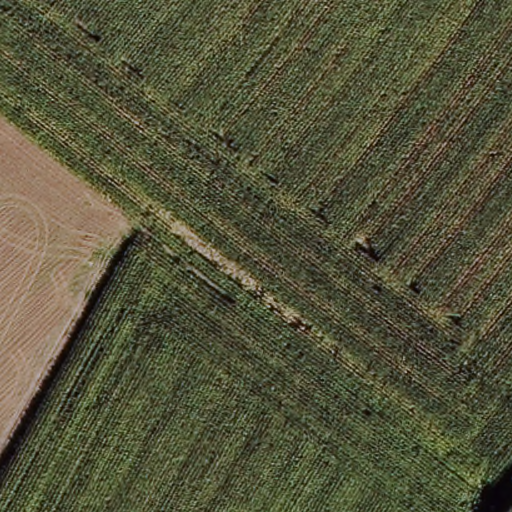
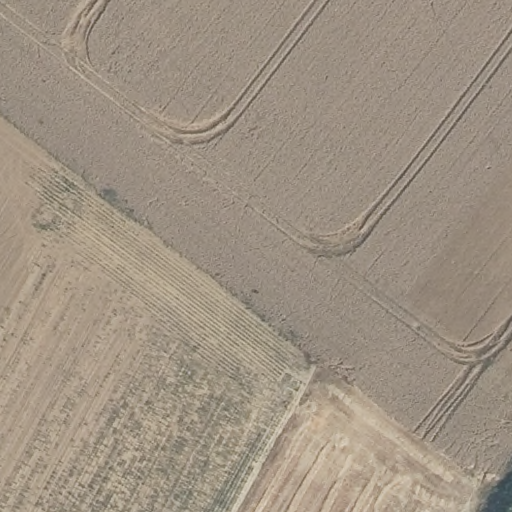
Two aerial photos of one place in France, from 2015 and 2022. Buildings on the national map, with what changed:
[]

